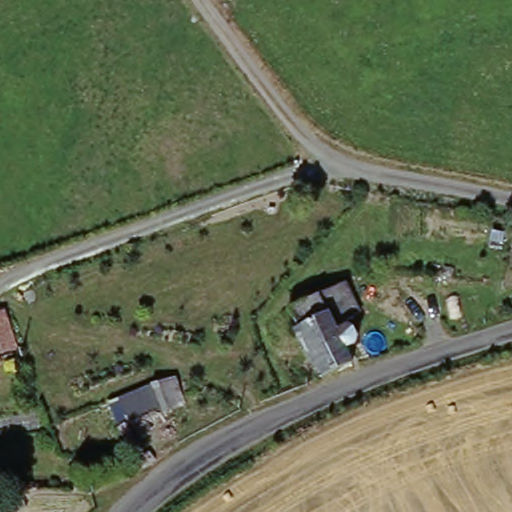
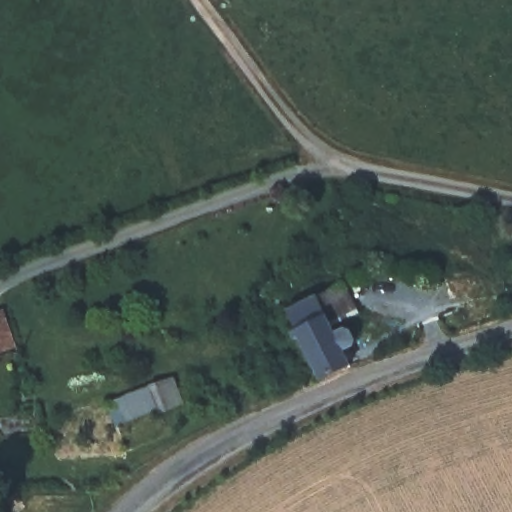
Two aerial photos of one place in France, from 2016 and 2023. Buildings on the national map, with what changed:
unchanged [(212,282),(215,295),(184,305),(180,293),(212,282)]
unchanged [(303,343),(298,345),(296,338),(300,335),(291,318),(346,290),(360,320),(337,331),(342,342),(354,337),(361,350),(348,356),(355,371),(321,381),(303,343)]
unchanged [(106,411),(170,383),(183,410),(160,420),(170,440),(127,456),(106,411)]

